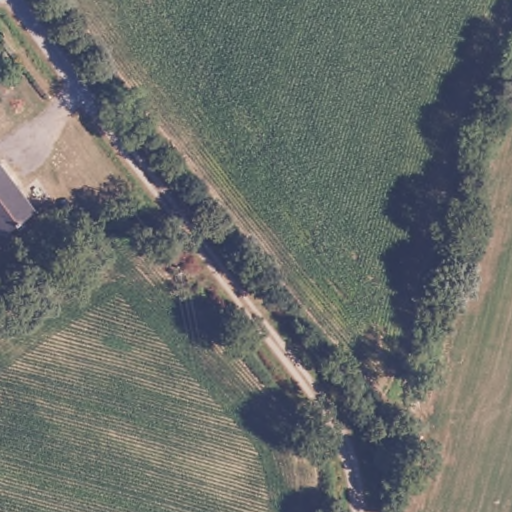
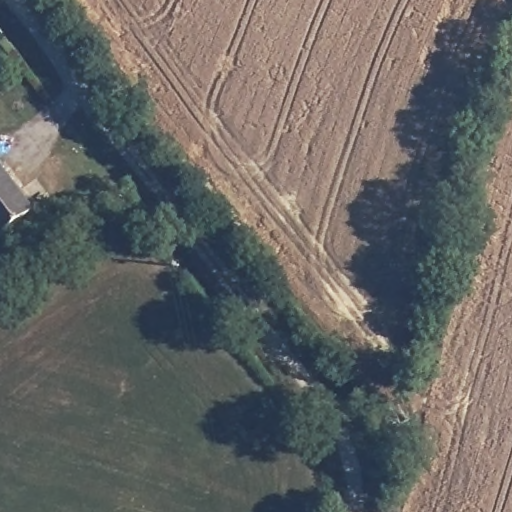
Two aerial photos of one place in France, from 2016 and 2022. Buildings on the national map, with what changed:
unchanged [(37,213),(5,237),(0,229),(0,162),(37,213)]

